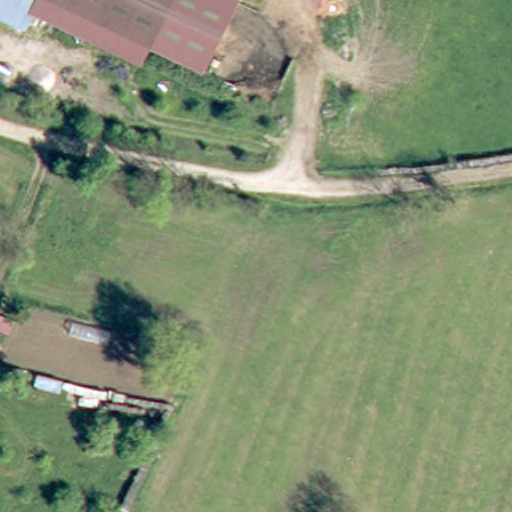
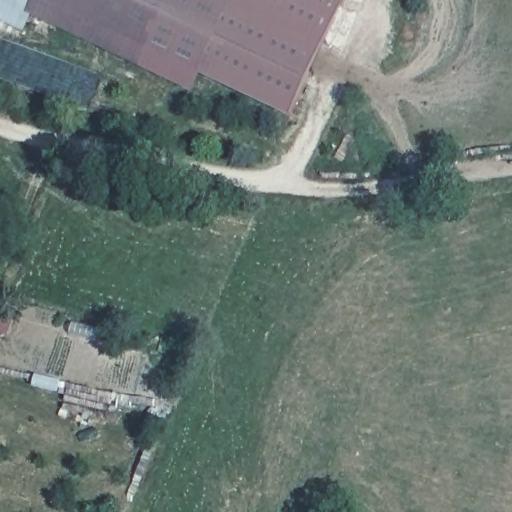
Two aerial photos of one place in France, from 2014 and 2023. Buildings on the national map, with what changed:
unchanged [(0,0),(32,0),(25,14),(21,23),(17,32),(0,23),(0,0)]
unchanged [(142,48),(133,66),(25,14),(32,0),(42,0),(142,48)]
unchanged [(230,4),(196,74),(142,48),(42,0),(223,0),(230,4)]
new [(292,118),(196,74),(230,4),(232,0),(346,0),(292,118)]
unchanged [(223,0),(232,0),(230,4),(223,0)]
unchanged [(12,331),(0,327),(0,318),(2,313),(18,320),(12,331)]

